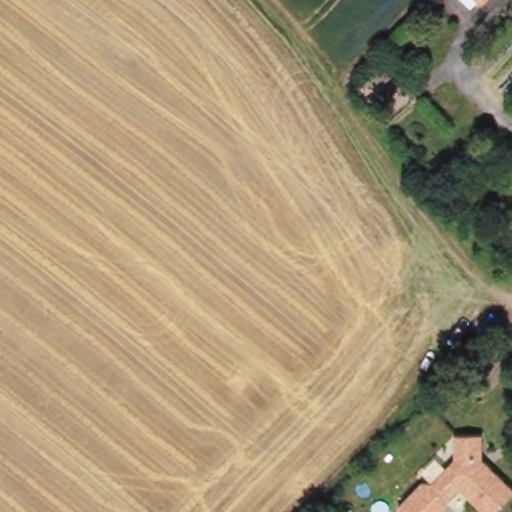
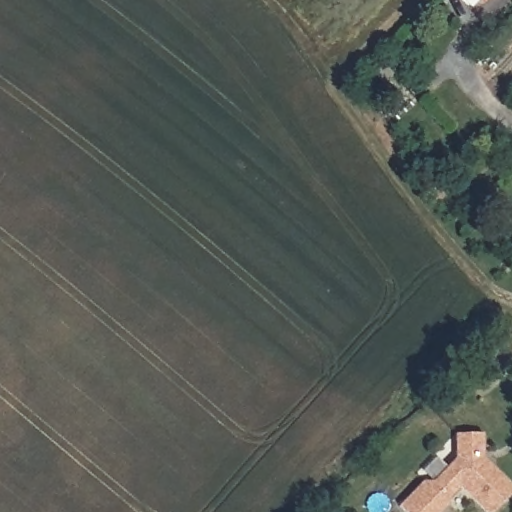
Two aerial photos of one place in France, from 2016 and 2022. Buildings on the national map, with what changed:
unchanged [(452,0),(481,0),(470,14),(452,0)]
unchanged [(483,0),(490,0),(487,4),(483,0)]
unchanged [(457,490),(437,512),(399,512),(395,508),(423,478),(430,482),(453,458),(454,436),(481,435),(484,462),(512,487),(512,493),(492,512),(481,512),(457,490)]

